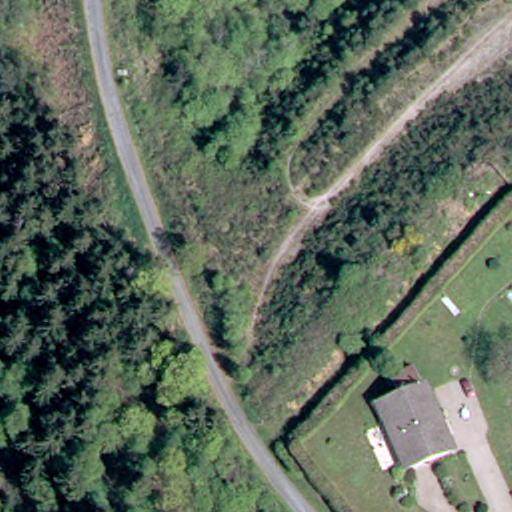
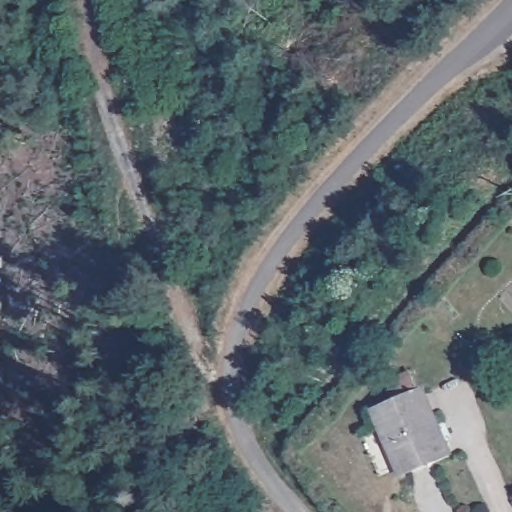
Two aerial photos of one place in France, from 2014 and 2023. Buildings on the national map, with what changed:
unchanged [(422,378),(451,443),(407,468),(374,401),(422,378)]

